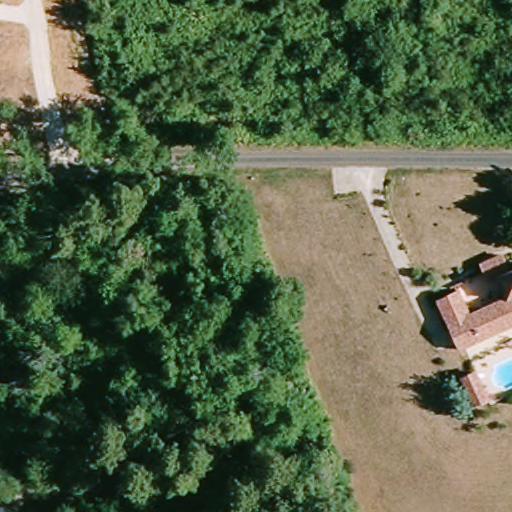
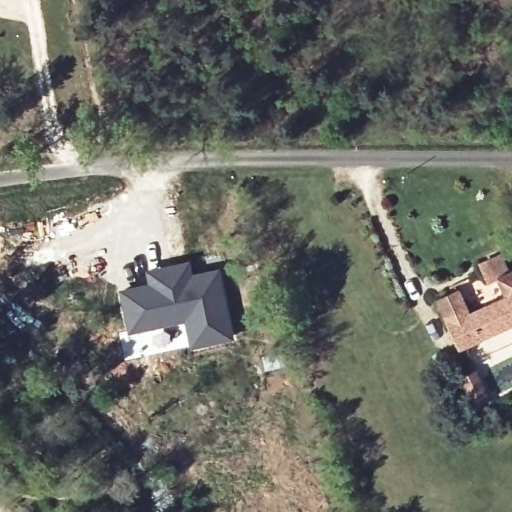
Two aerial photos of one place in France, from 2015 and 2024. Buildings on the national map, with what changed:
unchanged [(461,347),(438,298),(457,289),(468,311),(505,294),(498,276),(487,280),(479,263),(502,252),(509,267),(512,266),(512,323),(461,347)]
new [(132,327),(123,288),(152,282),(152,277),(150,269),(189,260),(191,269),(192,274),(219,268),(232,334),(193,342),(187,315),(162,321),(132,327)]
unchanged [(503,401),(489,407),(478,381),(492,375),(503,401)]

